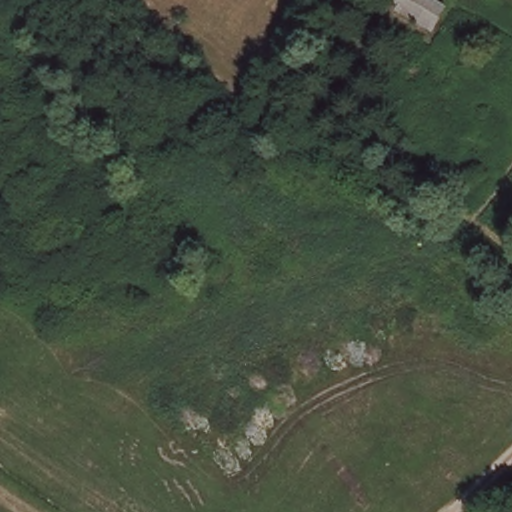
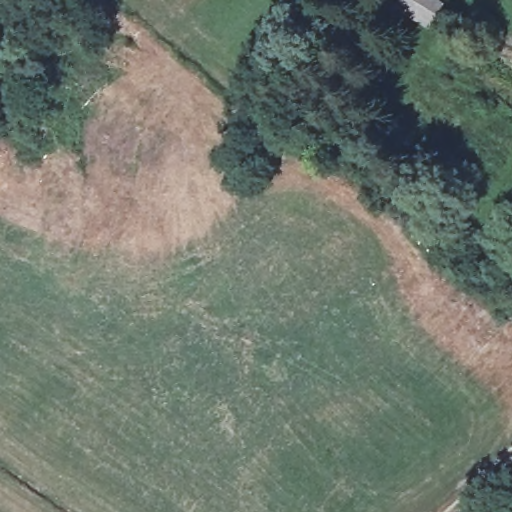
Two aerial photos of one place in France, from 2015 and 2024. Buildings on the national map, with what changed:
unchanged [(443,2),(430,25),(392,0),(440,0),(443,2)]

